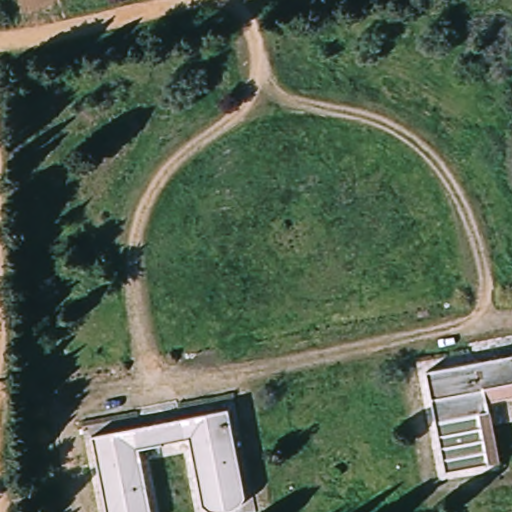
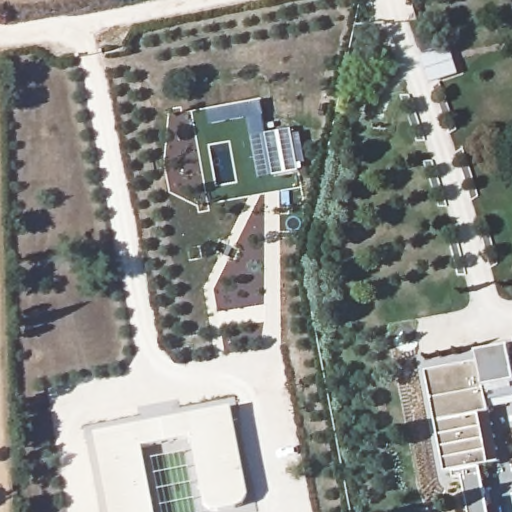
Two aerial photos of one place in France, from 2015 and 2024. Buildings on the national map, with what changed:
new [(246,119),(210,124),(208,111),(262,101),(265,115),(263,115),(266,134),(292,128),(293,134),(301,132),(306,164),(299,166),(300,170),(259,179),(246,119)]
unchanged [(439,473),(425,371),(512,358),(512,403),(492,407),(499,463),(439,473)]
unchanged [(236,414),(248,502),(245,506),(241,509),(236,511),(233,512),(200,512),(196,510),(196,509),(186,442),(146,448),(153,512),(109,512),(99,433),(236,414)]

